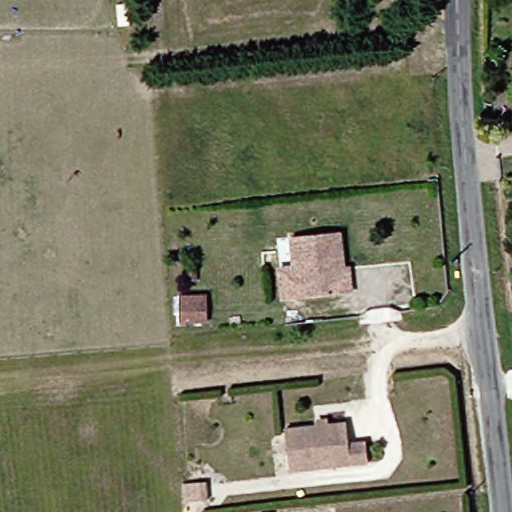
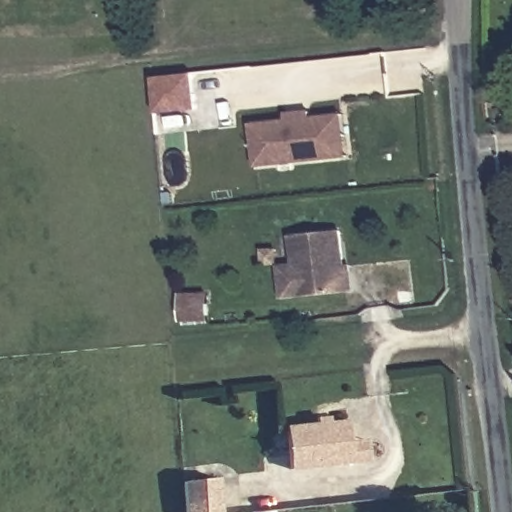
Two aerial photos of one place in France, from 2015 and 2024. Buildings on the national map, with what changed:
new [(193,74),(197,109),(156,113),(153,78),(193,74)]
new [(284,118),(308,115),(309,121),(325,119),(340,118),(345,160),(330,161),(255,170),(249,128),(285,124),(284,118)]
unchanged [(338,295),(291,302),(281,235),(328,228),(338,295)]
unchanged [(360,467),(342,468),(281,477),(274,431),(338,423),(340,445),(358,443),(360,467)]
unchanged [(199,512),(176,512),(174,497),(197,495),(199,512)]

